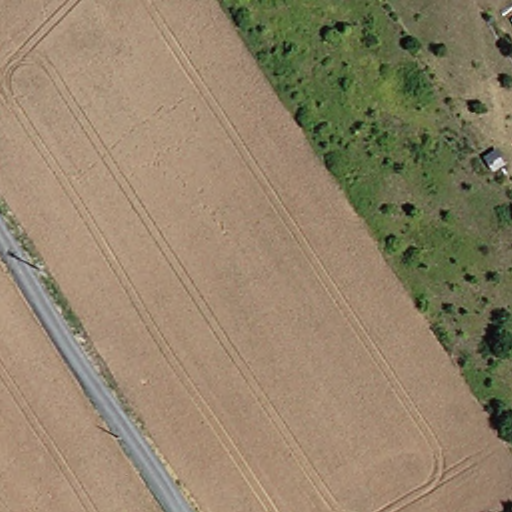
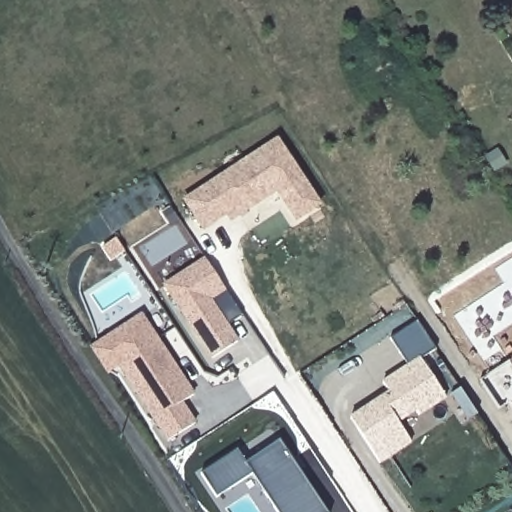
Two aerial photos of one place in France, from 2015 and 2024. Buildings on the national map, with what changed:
new [(280,140),(325,206),(295,226),(283,207),(254,228),(246,218),(240,222),(230,210),(207,225),(190,195),(280,140)]
new [(206,260),(244,317),(228,327),(239,343),(214,360),(166,287),(206,260)]
new [(197,424),(165,445),(117,370),(106,375),(89,348),(141,314),(195,396),(184,403),(197,424)]
new [(420,322),(438,350),(423,360),(411,367),(392,340),(420,322)]
new [(400,453),(382,465),(360,430),(353,420),(360,415),(392,395),(386,384),(411,367),(423,360),(448,399),(421,417),(418,412),(400,424),(409,436),(414,444),(400,453)]
new [(247,465),(281,442),(327,512),(277,512),(254,476),(218,500),(202,475),(239,451),(247,465)]

